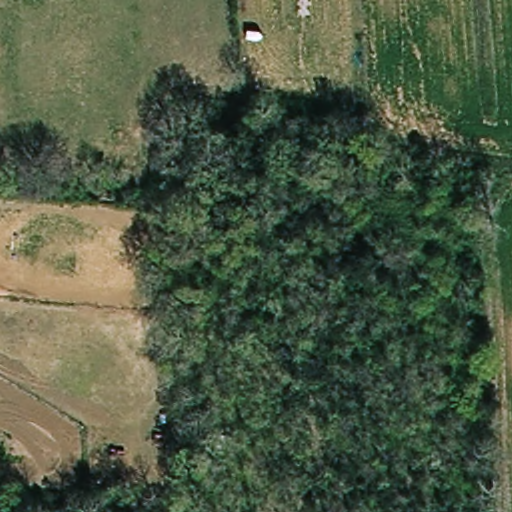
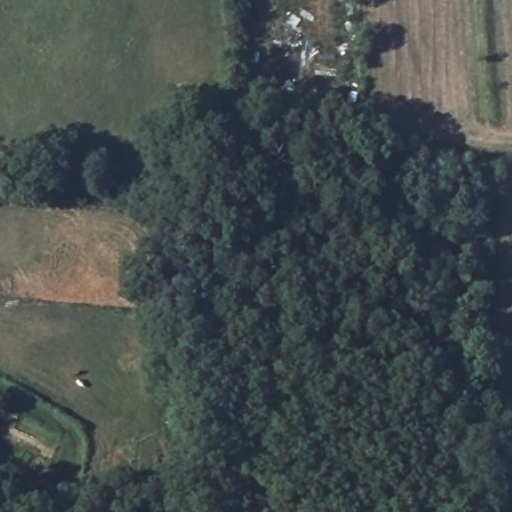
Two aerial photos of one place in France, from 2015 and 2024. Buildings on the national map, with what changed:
[]

